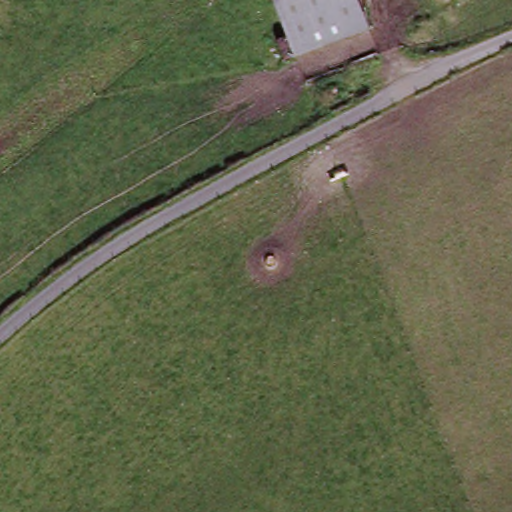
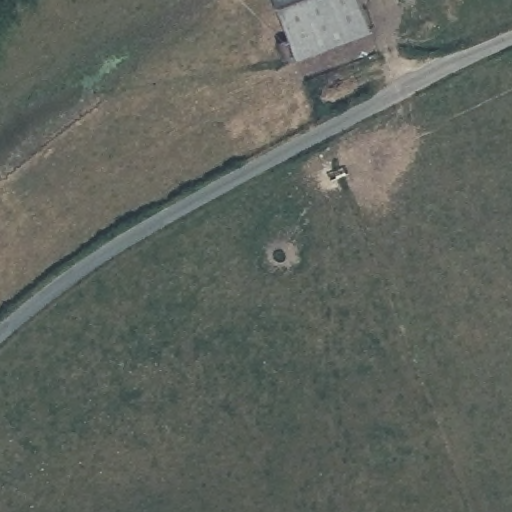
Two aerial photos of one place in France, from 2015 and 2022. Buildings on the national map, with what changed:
unchanged [(357,0),(369,30),(295,59),(273,0),(357,0)]

